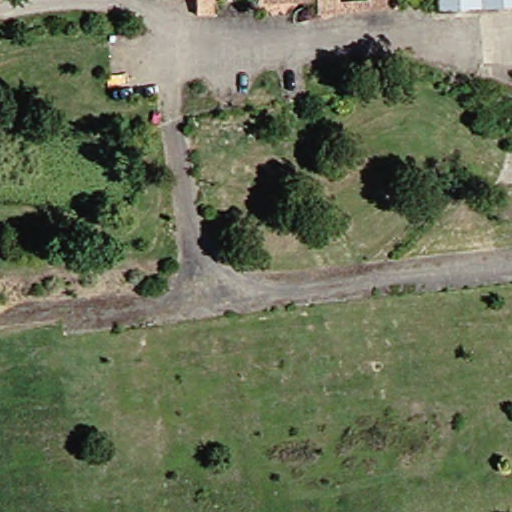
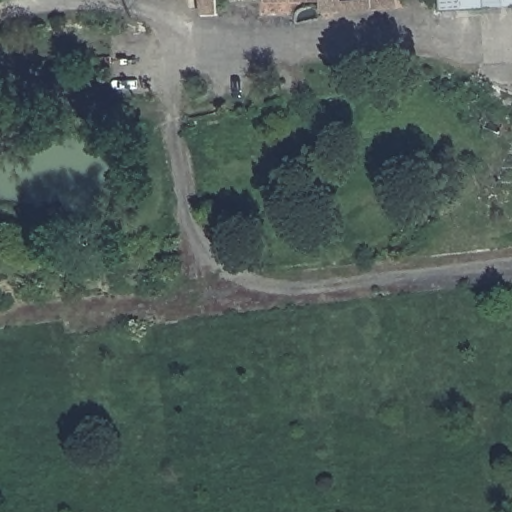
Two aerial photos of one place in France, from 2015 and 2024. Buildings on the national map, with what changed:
unchanged [(221,13),(205,13),(204,0),(220,0),(221,13)]
unchanged [(327,13),(326,2),(290,2),(269,3),(269,0),(401,0),(402,8),(327,13)]
unchanged [(446,11),(445,0),(512,0),(512,6),(446,11)]

